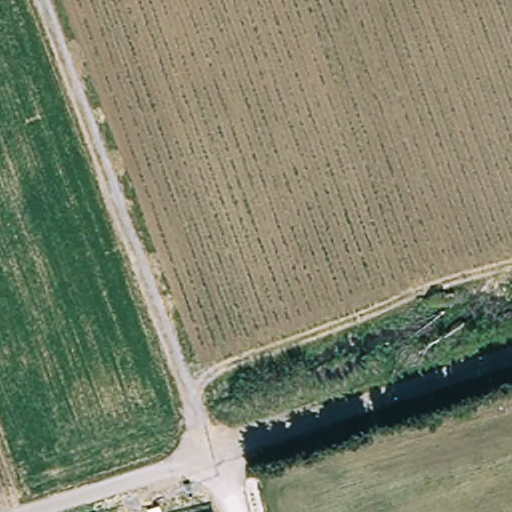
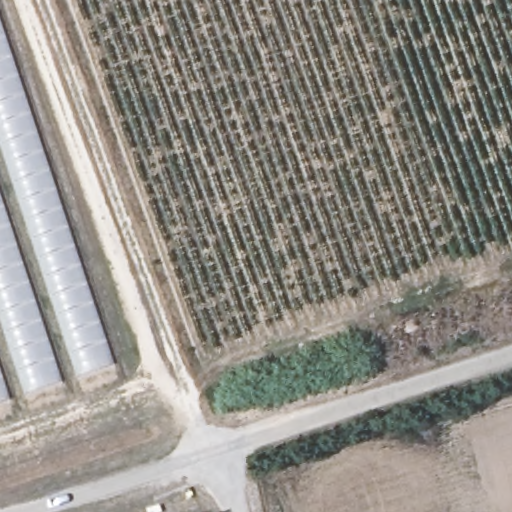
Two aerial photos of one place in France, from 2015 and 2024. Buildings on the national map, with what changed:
new [(116,364),(0,403),(0,15),(116,364)]

